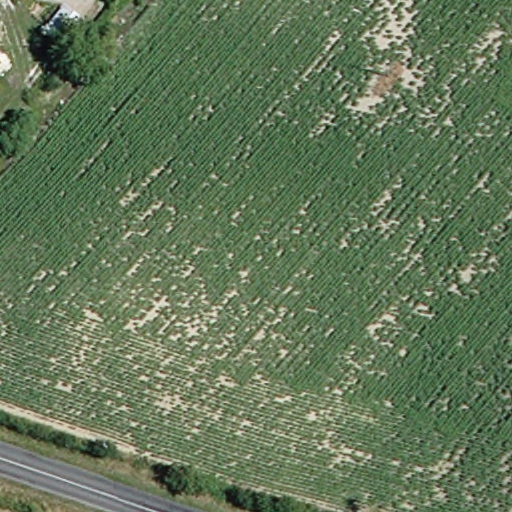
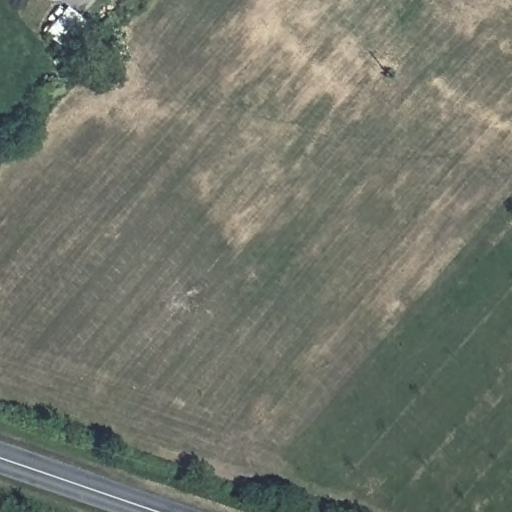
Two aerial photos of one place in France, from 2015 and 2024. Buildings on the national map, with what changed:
unchanged [(88,26),(65,55),(62,52),(50,67),(38,56),(49,42),(43,38),(66,11),(88,26)]

